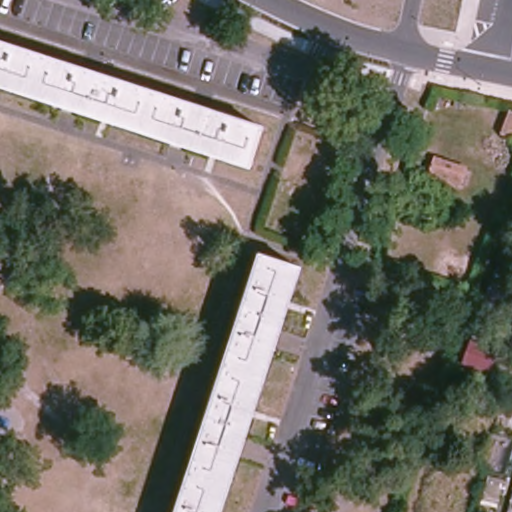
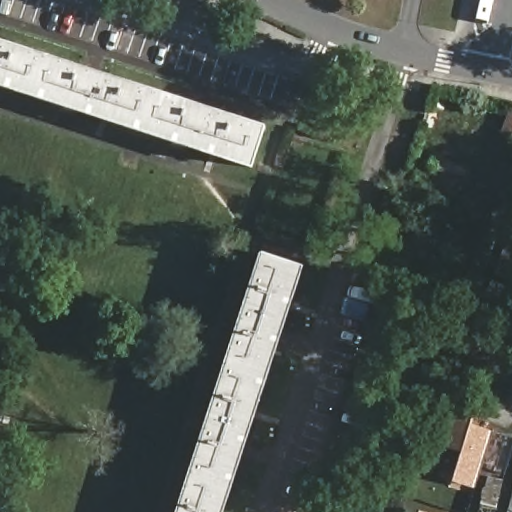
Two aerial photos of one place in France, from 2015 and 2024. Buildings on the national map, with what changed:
unchanged [(0,87),(0,43),(263,130),(261,139),(252,170),(224,161),(0,87)]
unchanged [(502,136),(510,115),(512,116),(512,138),(502,136)]
unchanged [(459,186),(428,179),(434,159),(466,168),(459,186)]
unchanged [(301,266),(219,512),(177,512),(262,255),(301,266)]
unchanged [(490,396),(492,402),(490,410),(485,414),(478,414),(472,408),(472,401),(476,395),(483,393),(490,396)]
new [(474,490),(450,483),(468,423),(492,432),(474,490)]

